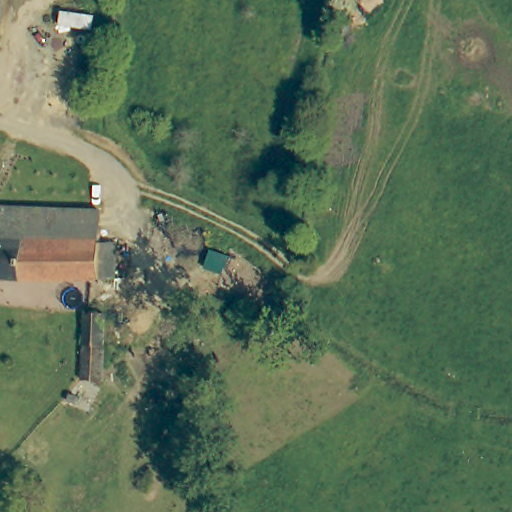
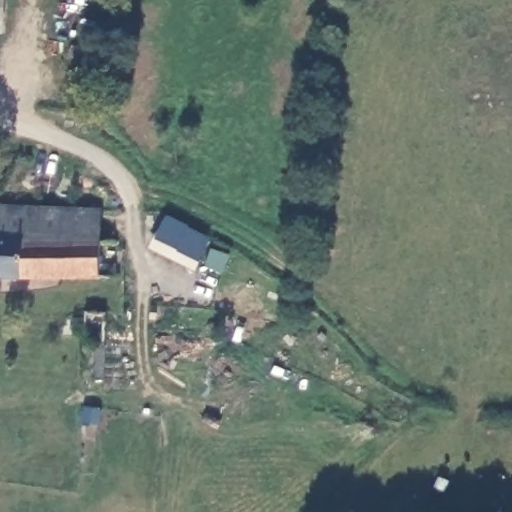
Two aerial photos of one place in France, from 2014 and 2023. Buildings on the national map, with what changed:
unchanged [(0,29),(0,0),(4,0),(4,29),(0,29)]
unchanged [(95,241),(105,241),(104,279),(20,275),(0,274),(0,201),(97,211),(95,241)]
new [(167,217),(211,240),(196,273),(149,250),(167,217)]
unchanged [(111,315),(99,381),(77,377),(89,311),(111,315)]

